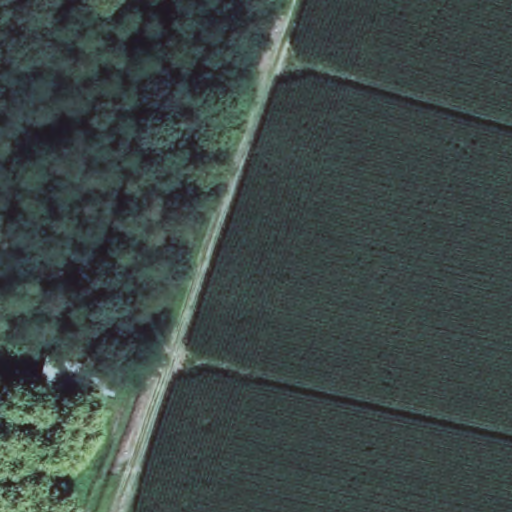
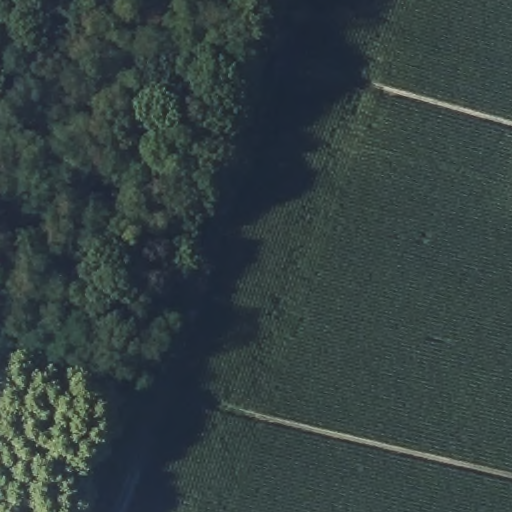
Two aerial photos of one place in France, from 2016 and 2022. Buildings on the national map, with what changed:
unchanged [(124,371),(116,396),(42,383),(48,353),(124,371)]

